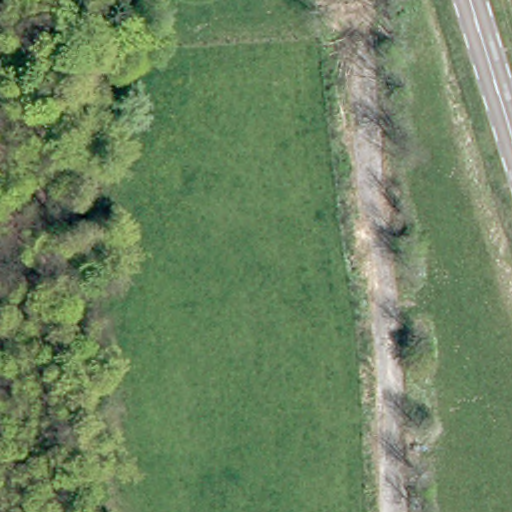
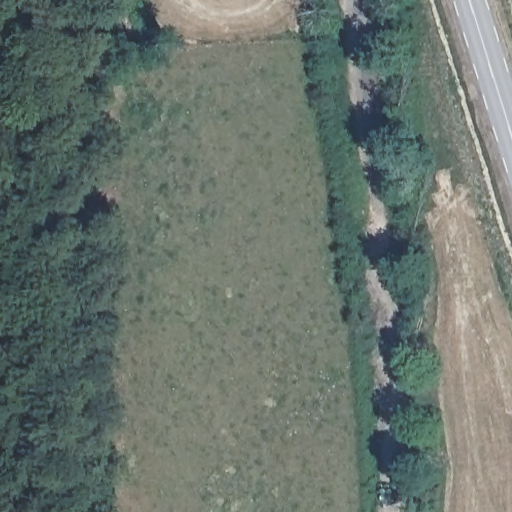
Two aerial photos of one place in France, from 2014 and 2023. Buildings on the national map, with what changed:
[]

